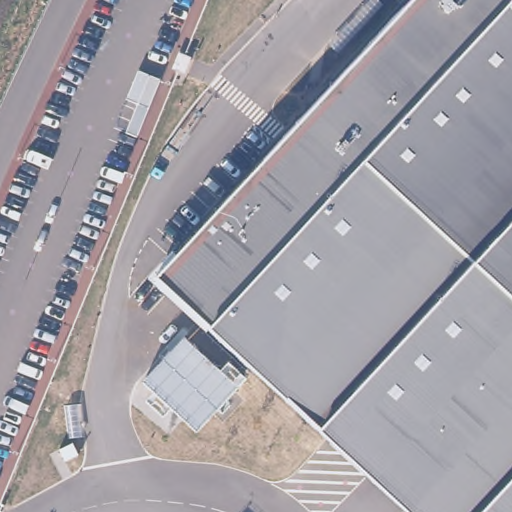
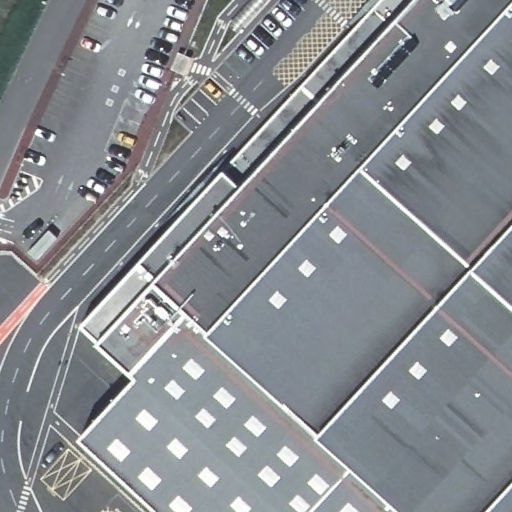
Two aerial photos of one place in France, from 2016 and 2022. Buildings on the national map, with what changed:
new [(409,0),(154,276),(410,512),(166,512),(81,434),(137,371),(100,338),(82,321),(225,166),(379,0),(409,0)]
unchanged [(154,276),(409,0),(512,0),(512,2),(426,95),(366,160),(512,296),(512,512),(410,512),(154,276)]
unchanged [(366,160),(426,95),(512,2),(512,296),(366,160)]

